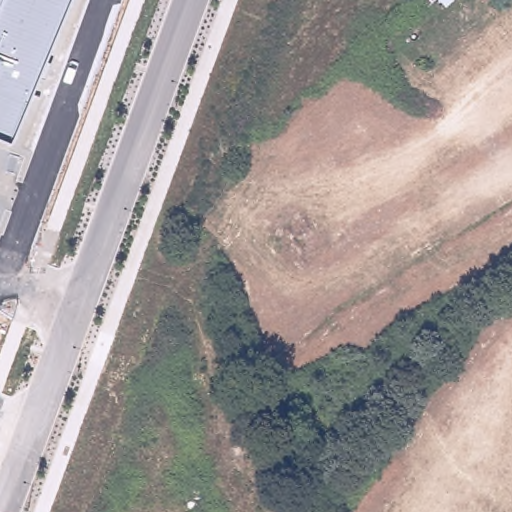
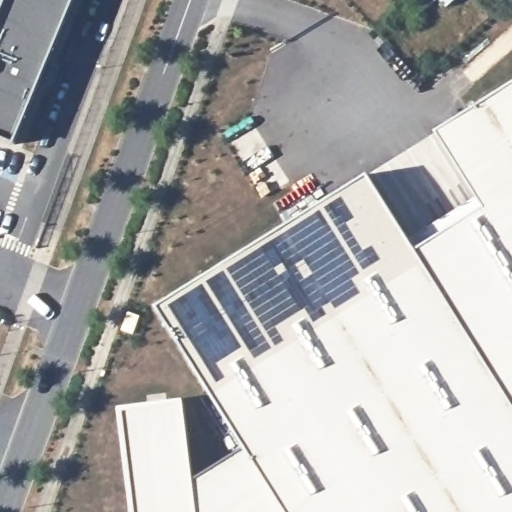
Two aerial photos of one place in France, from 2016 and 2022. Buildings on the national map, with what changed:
unchanged [(14,143),(0,137),(0,0),(72,0),(14,143)]
unchanged [(439,0),(453,0),(445,8),(439,0)]
new [(155,307),(367,175),(415,252),(483,209),(435,132),(512,84),(512,512),(284,512),(244,449),(155,307)]
new [(182,402),(190,482),(244,449),(284,512),(131,512),(118,409),(182,402)]

